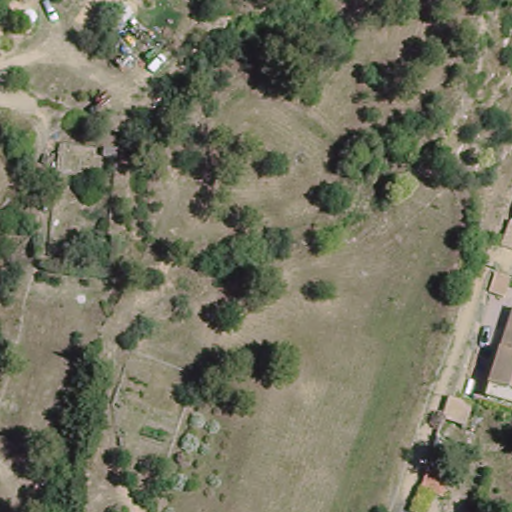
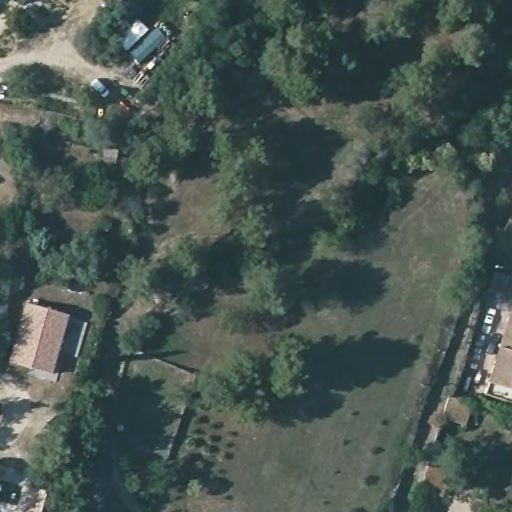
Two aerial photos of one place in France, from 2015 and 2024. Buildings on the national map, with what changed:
new [(18,0),(25,0),(21,4),(18,0)]
new [(70,310),(53,370),(11,358),(27,299),(70,310)]
unchanged [(489,386),(512,322),(512,394),(489,386)]
unchanged [(472,404),(468,430),(442,422),(448,398),(472,404)]
unchanged [(442,502),(420,494),(427,471),(451,479),(442,502)]

